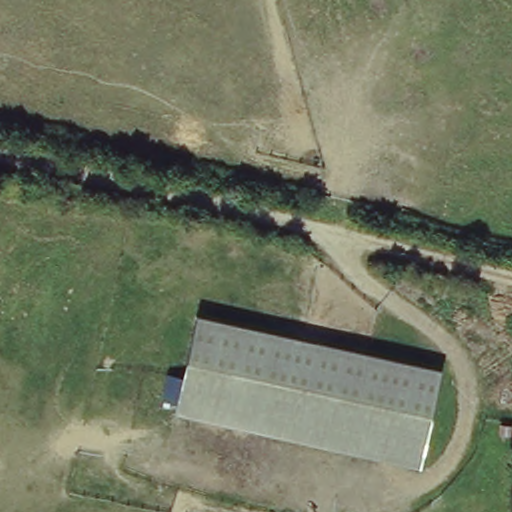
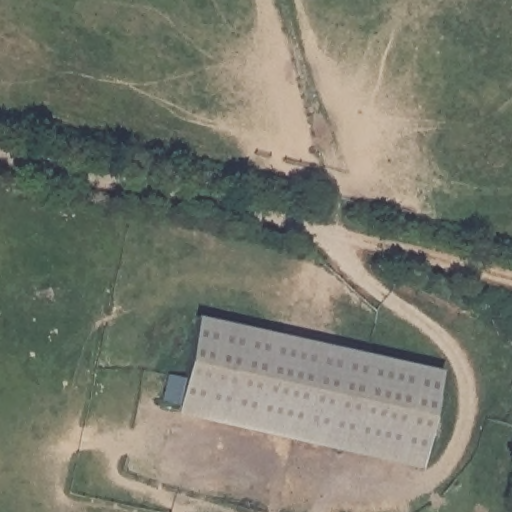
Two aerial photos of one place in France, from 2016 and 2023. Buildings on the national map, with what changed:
unchanged [(444,368),(422,468),(175,414),(197,315),(444,368)]

